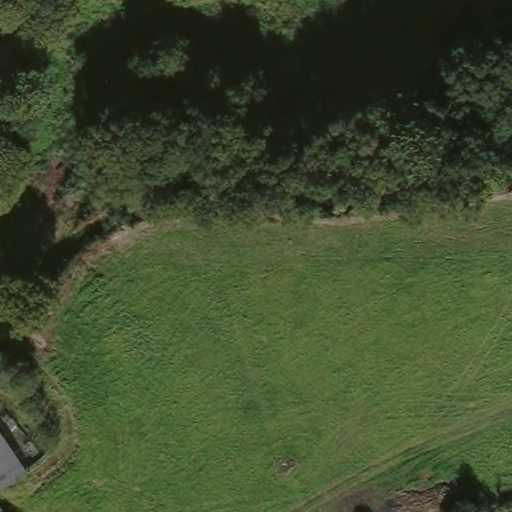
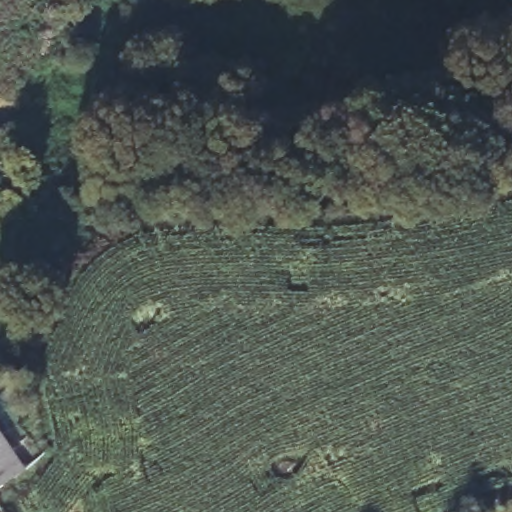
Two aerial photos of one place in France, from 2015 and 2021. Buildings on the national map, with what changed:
unchanged [(16,475),(0,487),(0,453),(16,475)]

